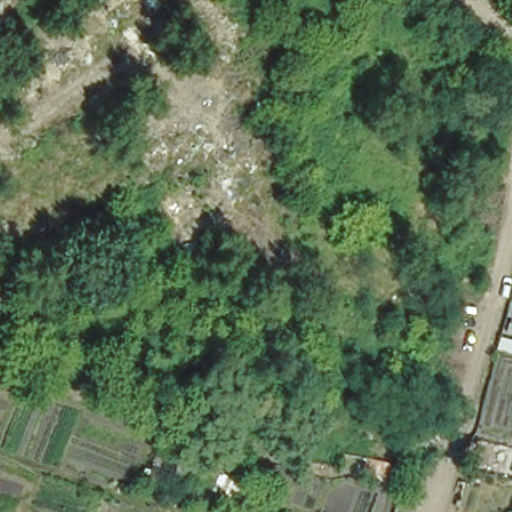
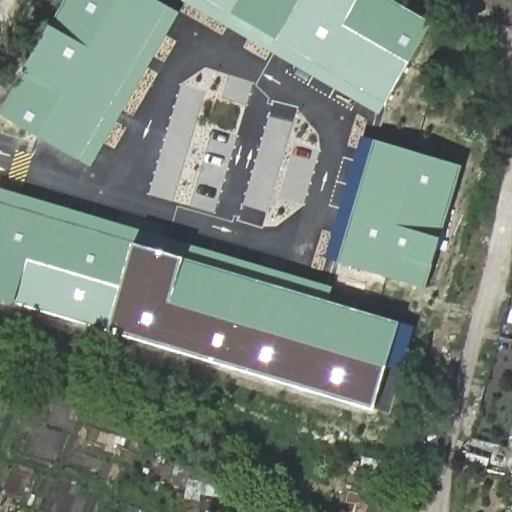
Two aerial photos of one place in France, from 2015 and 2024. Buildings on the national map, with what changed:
new [(92,166),(0,113),(0,112),(26,72),(53,24),(67,0),(158,0),(180,13),(92,166)]
new [(185,0),(393,0),(434,24),(380,115),(185,0)]
new [(375,140),(463,165),(442,236),(433,265),(427,288),(340,262),(375,140)]
new [(141,230),(133,242),(187,257),(192,245),(333,286),(328,299),(400,320),(375,408),(109,329),(16,303),(0,298),(0,187),(141,230)]
unchanged [(221,466),(214,492),(196,487),(204,461),(221,466)]

